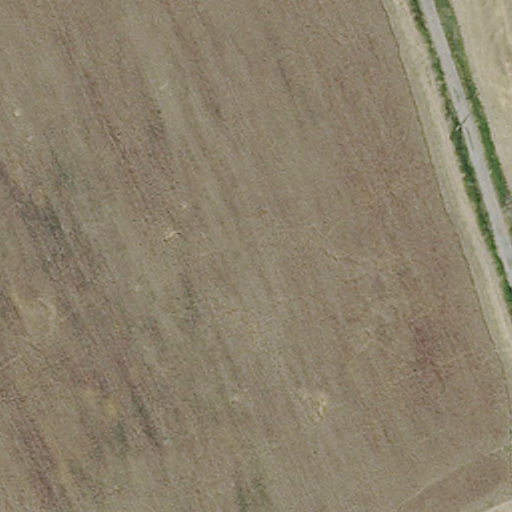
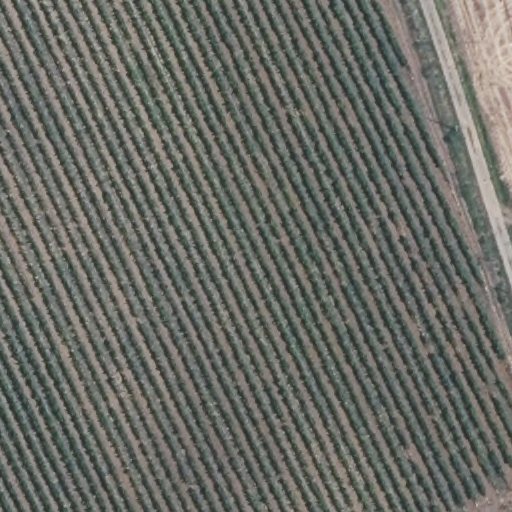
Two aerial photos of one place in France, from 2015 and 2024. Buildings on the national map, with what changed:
[]

